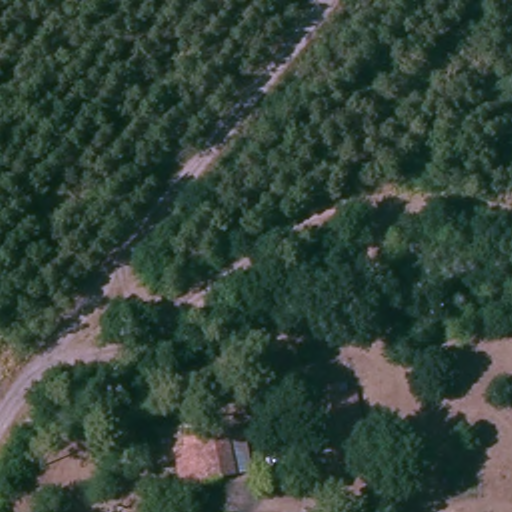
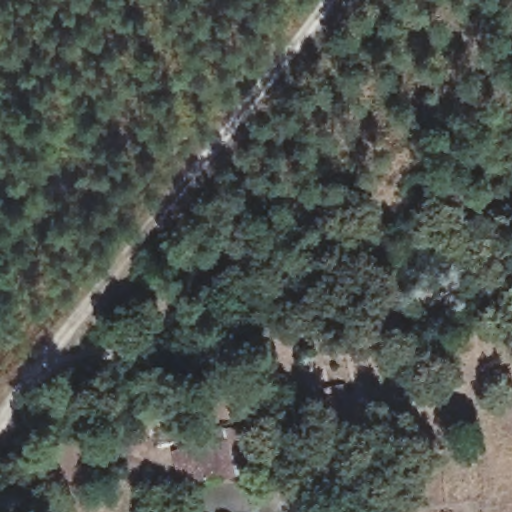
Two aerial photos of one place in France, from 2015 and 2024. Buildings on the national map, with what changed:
unchanged [(330,449),(322,411),(357,406),(365,443),(330,449)]
unchanged [(242,472),(233,475),(179,487),(170,451),(210,442),(207,433),(231,426),(242,472)]

